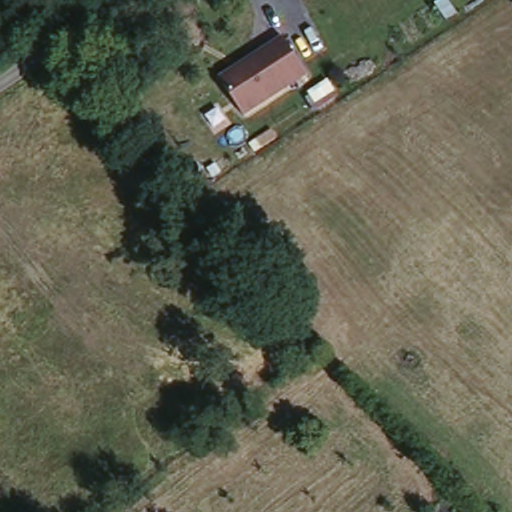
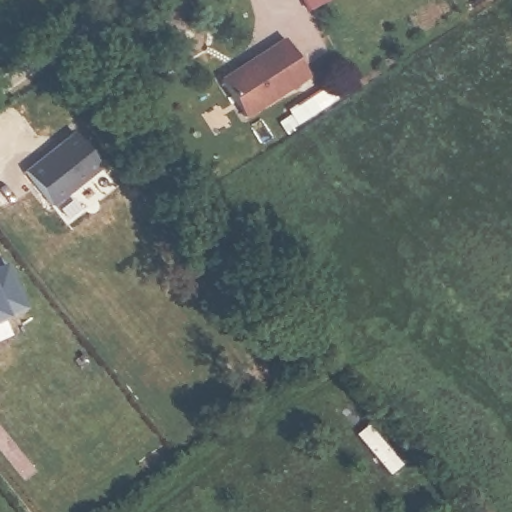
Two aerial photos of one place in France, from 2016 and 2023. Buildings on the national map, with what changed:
unchanged [(221,77),(286,37),(309,78),(245,118),(221,77)]
new [(74,135),(102,170),(52,209),(24,174),(74,135)]
new [(25,313),(0,324),(0,271),(5,268),(25,313)]

